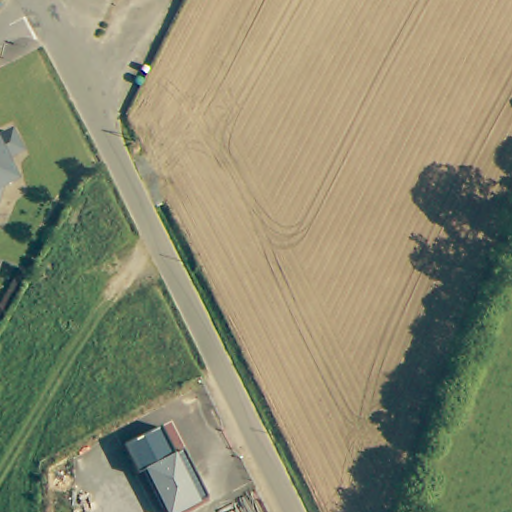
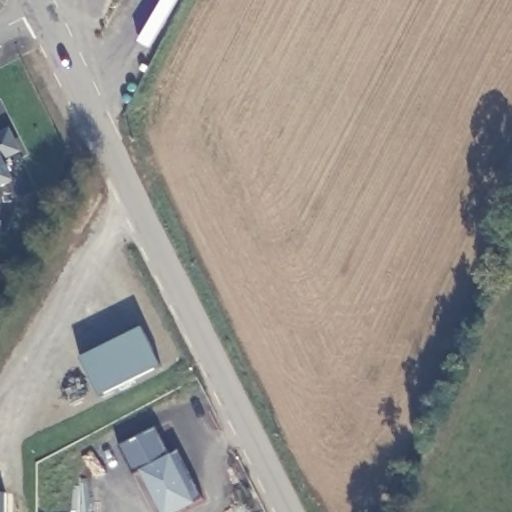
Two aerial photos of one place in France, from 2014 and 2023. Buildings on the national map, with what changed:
unchanged [(17,148),(1,156),(11,177),(0,183),(0,133),(7,129),(17,148)]
new [(160,367),(99,398),(80,360),(142,330),(160,367)]
unchanged [(153,428),(167,456),(176,452),(200,500),(176,512),(159,512),(139,471),(131,475),(116,446),(153,428)]
new [(0,494),(5,494),(5,512),(0,512),(0,494)]

